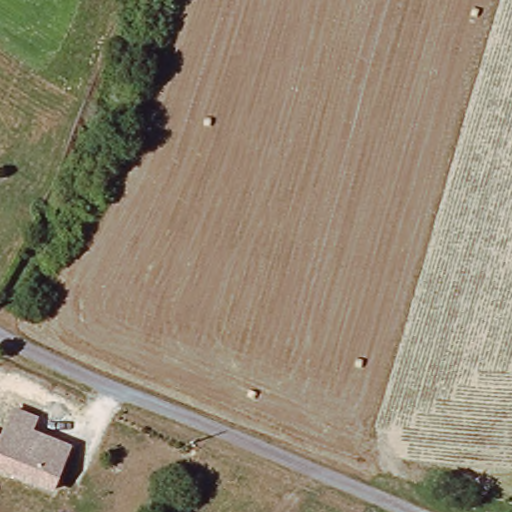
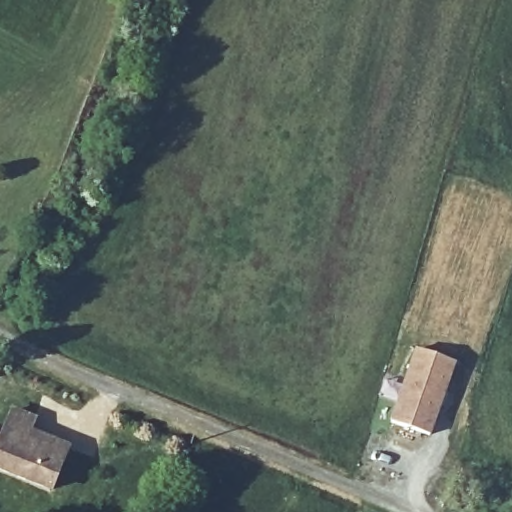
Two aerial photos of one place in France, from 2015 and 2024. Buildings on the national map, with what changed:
new [(456,364),(431,439),(388,424),(415,349),(456,364)]
unchanged [(11,406),(38,416),(32,432),(70,447),(52,495),(0,473),(0,434),(11,406)]

